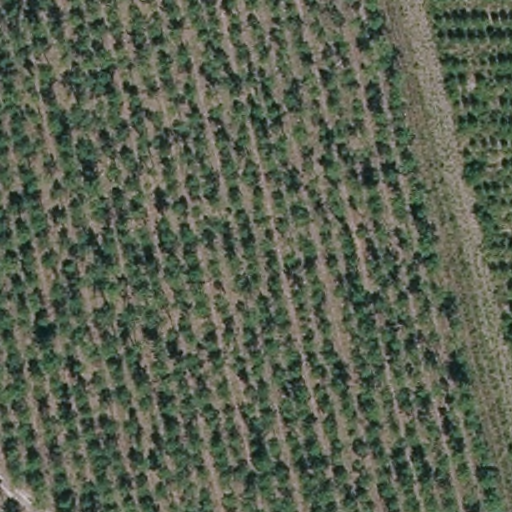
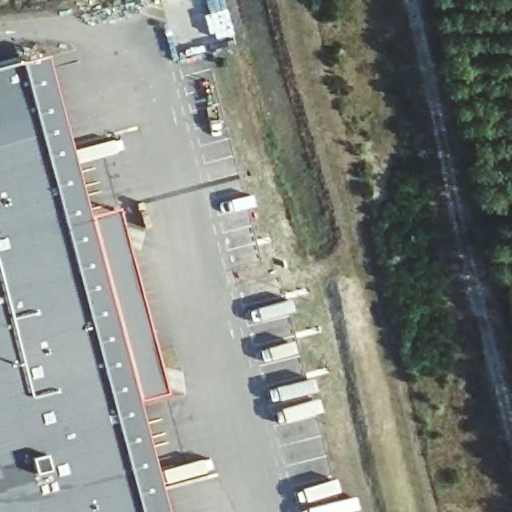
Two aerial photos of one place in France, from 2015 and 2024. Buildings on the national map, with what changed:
new [(16,58),(18,63),(45,55),(87,215),(116,208),(167,394),(137,402),(166,512),(0,512),(0,62),(16,58)]

